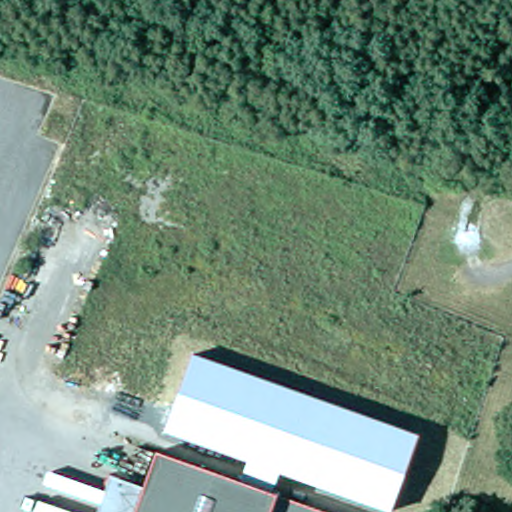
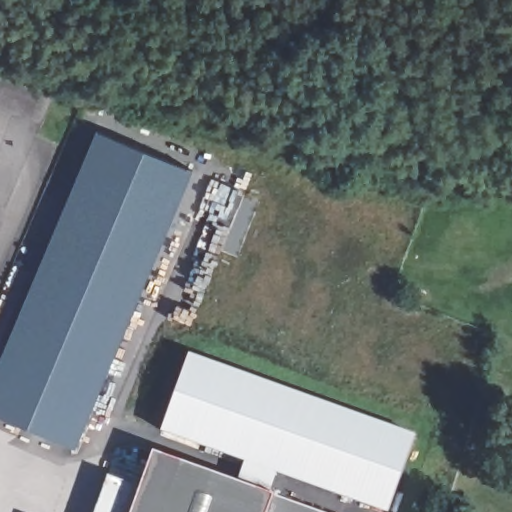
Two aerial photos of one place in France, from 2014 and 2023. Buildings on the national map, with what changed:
new [(95,132),(190,172),(72,449),(0,418),(0,353),(95,132)]
unchanged [(416,436),(389,512),(386,512),(280,475),(275,486),(242,473),(244,462),(162,435),(191,355),(416,436)]
unchanged [(142,504),(160,457),(309,512),(139,512),(142,504)]
unchanged [(140,507),(139,512),(97,512),(110,475),(147,489),(140,507)]

